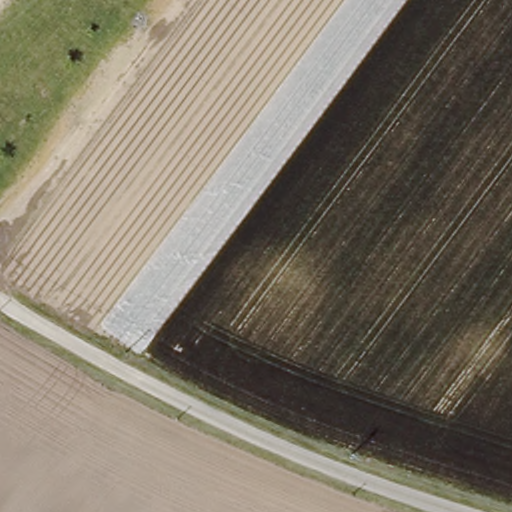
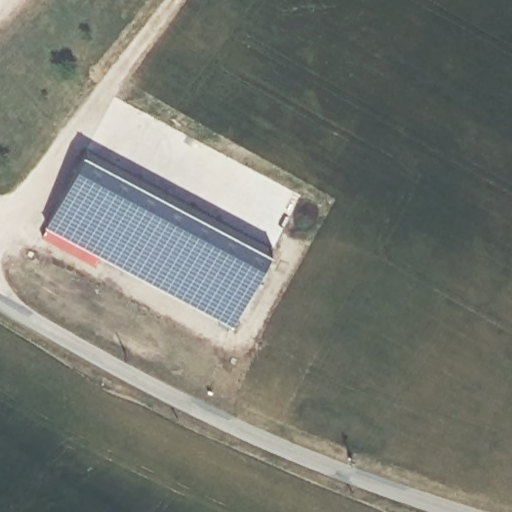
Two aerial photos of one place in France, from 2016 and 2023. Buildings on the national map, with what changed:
new [(83,146),(269,247),(228,322),(42,222),(83,146)]

